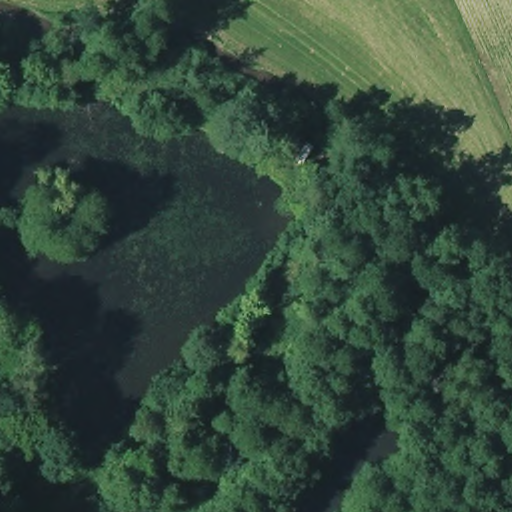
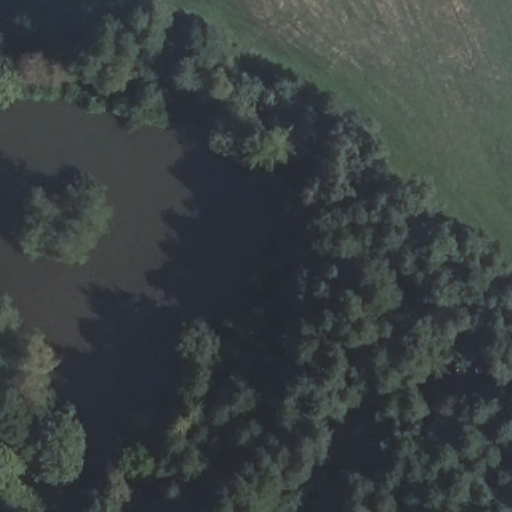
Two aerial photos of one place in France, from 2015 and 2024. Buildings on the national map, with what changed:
unchanged [(304,166),(283,150),(293,136),(316,152),(304,166)]

